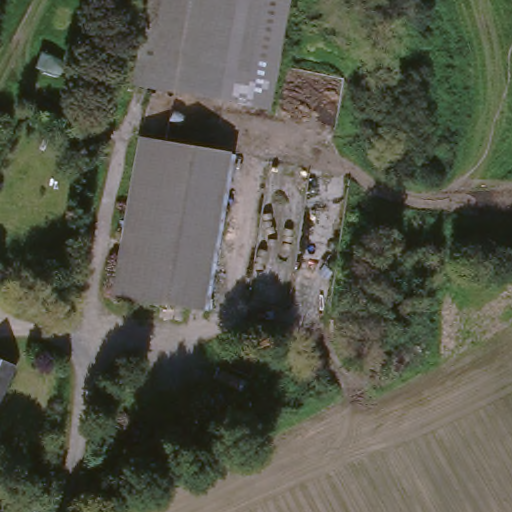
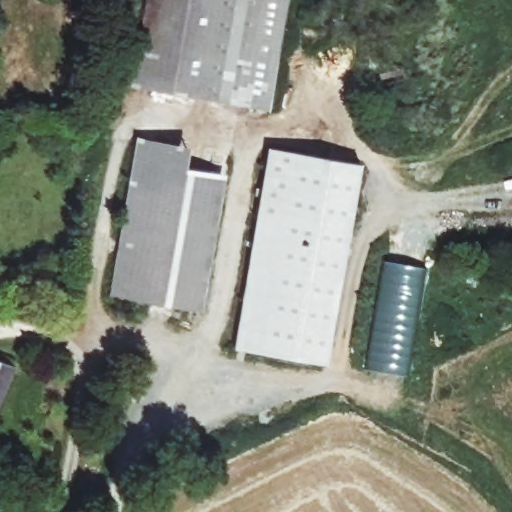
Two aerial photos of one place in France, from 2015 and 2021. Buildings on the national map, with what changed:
unchanged [(130,87),(149,0),(263,0),(243,107),(130,87)]
unchanged [(269,111),(243,107),(263,0),(287,0),(269,111)]
unchanged [(110,295),(136,137),(229,154),(203,310),(110,295)]
new [(267,148),(357,163),(324,363),(259,352),(233,348),(238,321),(267,148)]
unchanged [(13,366),(0,396),(0,361),(13,366)]

